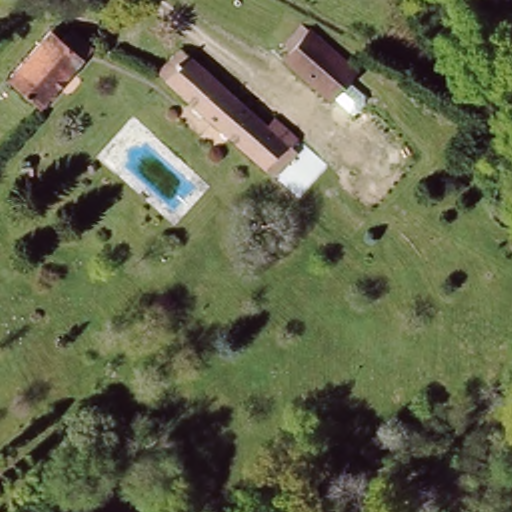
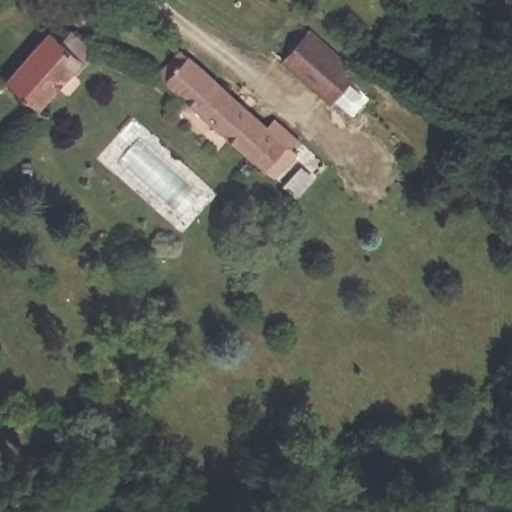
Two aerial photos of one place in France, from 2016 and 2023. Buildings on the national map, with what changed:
unchanged [(56,24),(66,35),(78,21),(98,40),(33,109),(3,80),(56,24)]
unchanged [(291,52),(284,45),(304,24),(354,73),(329,101),(284,59),(291,52)]
unchanged [(184,56),(263,129),(269,122),(299,149),(292,156),(298,162),(273,189),(159,82),(184,56)]

